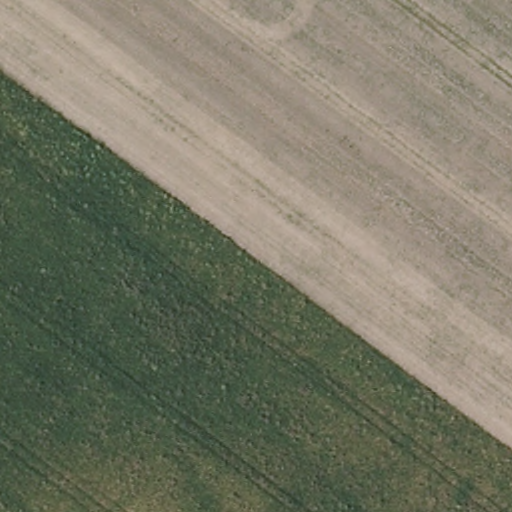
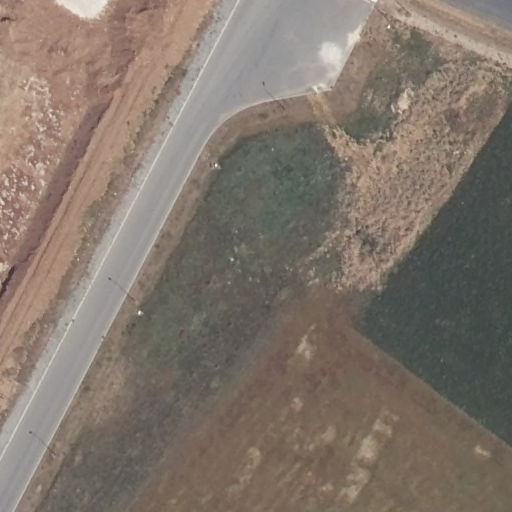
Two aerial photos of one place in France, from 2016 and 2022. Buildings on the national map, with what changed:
[]

